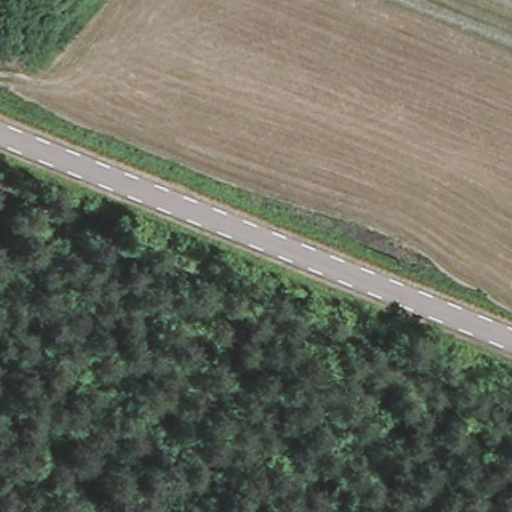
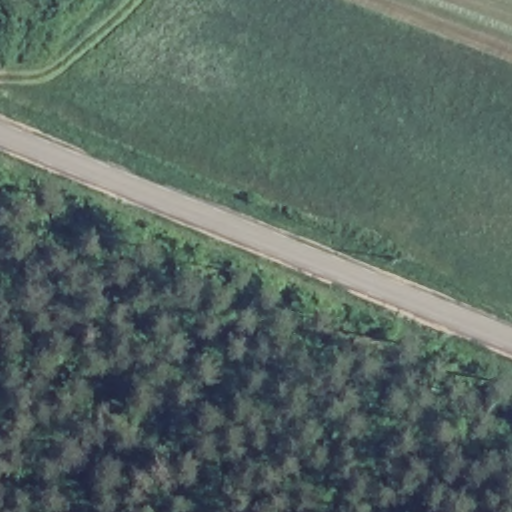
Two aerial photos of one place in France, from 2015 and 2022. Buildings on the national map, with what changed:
[]

